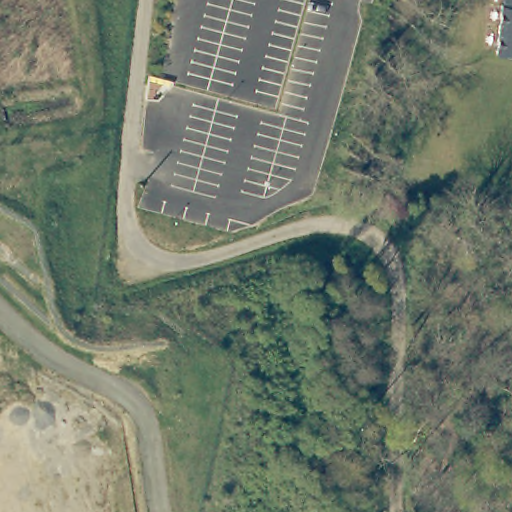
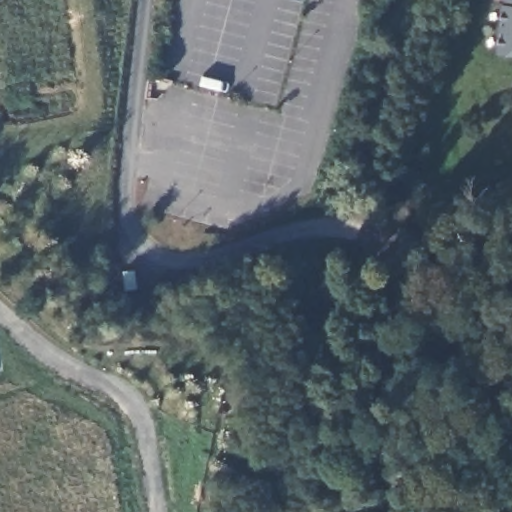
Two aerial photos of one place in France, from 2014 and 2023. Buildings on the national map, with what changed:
unchanged [(496,54),(502,0),(512,0),(512,56),(496,54)]

